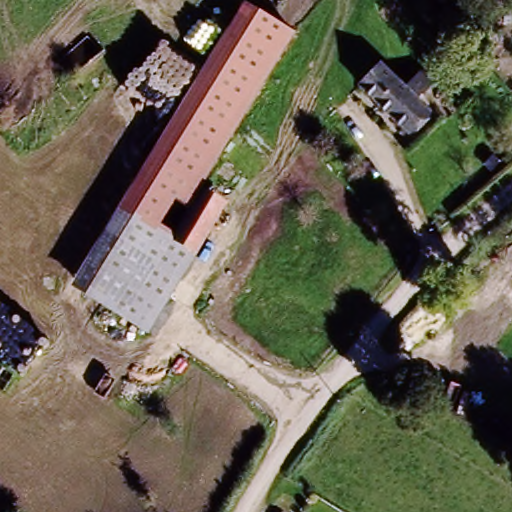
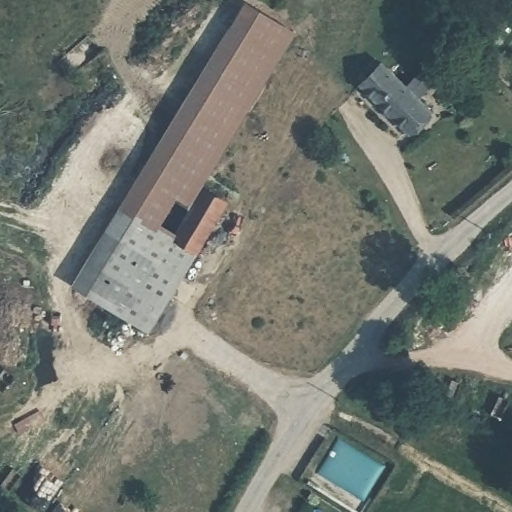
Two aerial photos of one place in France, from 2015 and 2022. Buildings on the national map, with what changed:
unchanged [(243,2),(295,33),(200,188),(203,190),(178,231),(124,202),(243,2)]
unchanged [(419,110),(398,131),(356,85),(378,65),(400,86),(413,72),(428,85),(411,102),(419,110)]
unchanged [(124,202),(178,231),(203,190),(228,204),(198,254),(158,331),(73,287),(124,202)]

